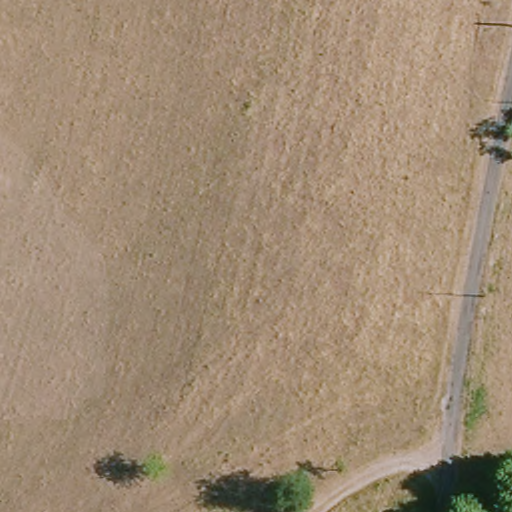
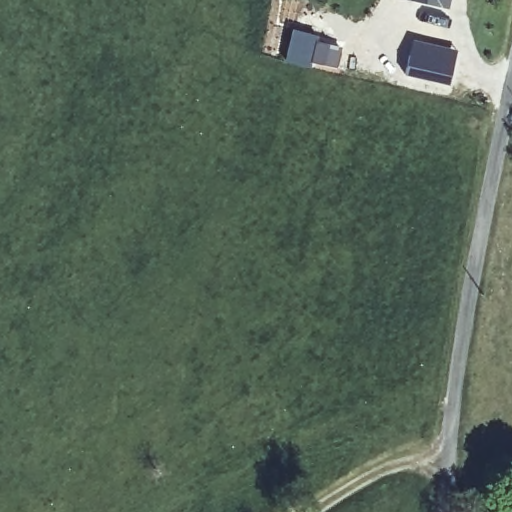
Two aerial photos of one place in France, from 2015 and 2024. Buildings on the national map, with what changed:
new [(448,7),(415,0),(449,0),(448,7)]
new [(291,27),(319,35),(318,38),(342,45),(337,69),(310,63),(309,68),(283,62),(291,27)]
new [(412,37),(458,49),(449,80),(405,70),(412,37)]

